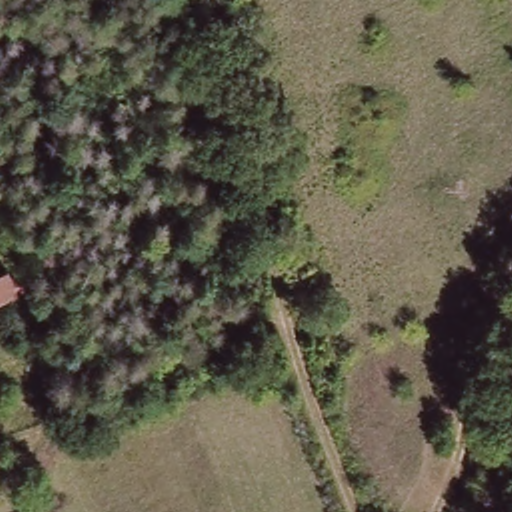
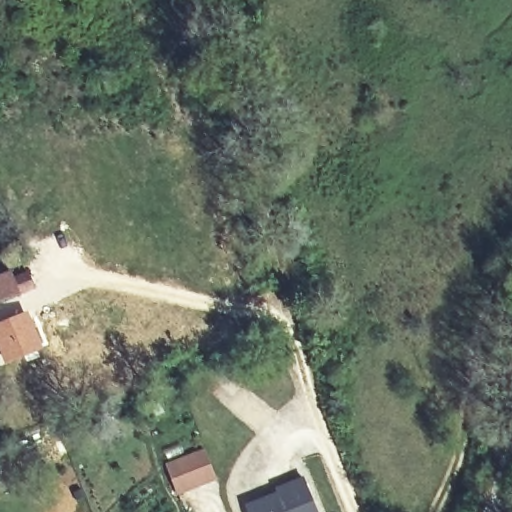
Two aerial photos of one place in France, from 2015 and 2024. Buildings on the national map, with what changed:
unchanged [(37,285),(17,293),(0,300),(0,271),(8,267),(12,276),(30,269),(37,285)]
new [(45,347),(4,363),(0,354),(0,320),(30,308),(45,347)]
new [(205,451),(215,478),(179,492),(167,465),(205,451)]
unchanged [(248,512),(245,505),(275,492),(275,490),(303,478),(317,512),(248,512)]

